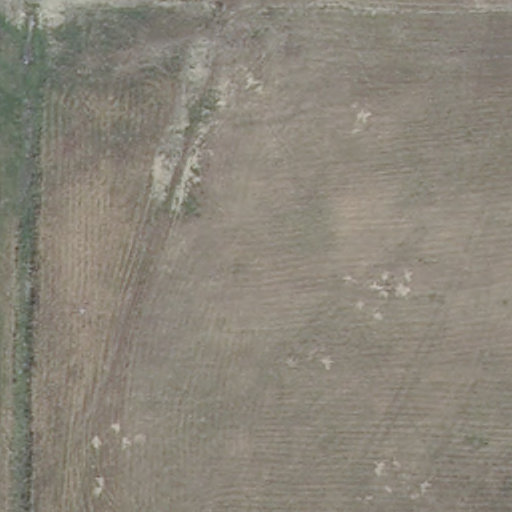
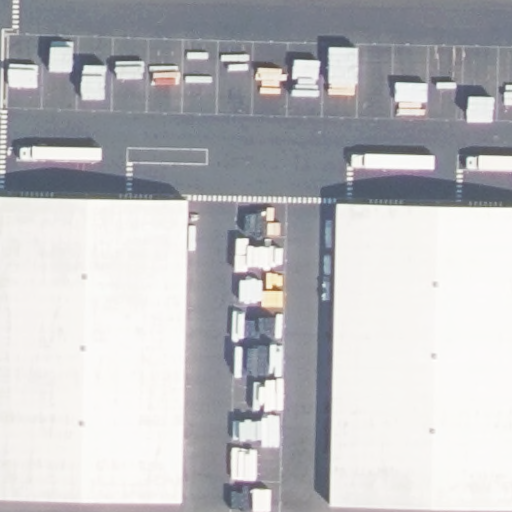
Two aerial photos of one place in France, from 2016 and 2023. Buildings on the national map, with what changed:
new [(197,512),(0,512),(0,206),(204,206),(197,512)]
new [(336,512),(342,206),(512,206),(512,512),(336,512)]

